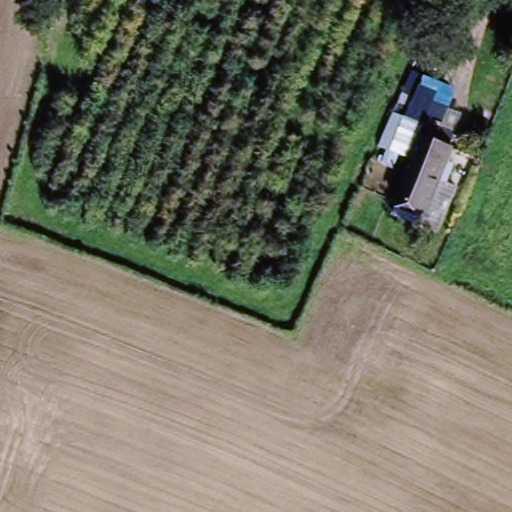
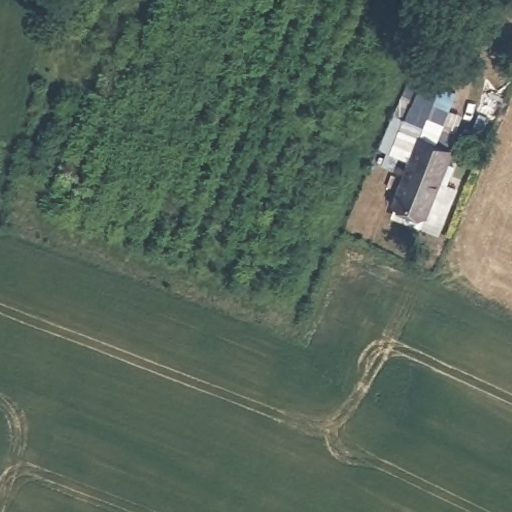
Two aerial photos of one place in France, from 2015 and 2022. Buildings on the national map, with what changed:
unchanged [(425,147),(452,160),(425,222),(397,211),(425,147)]

